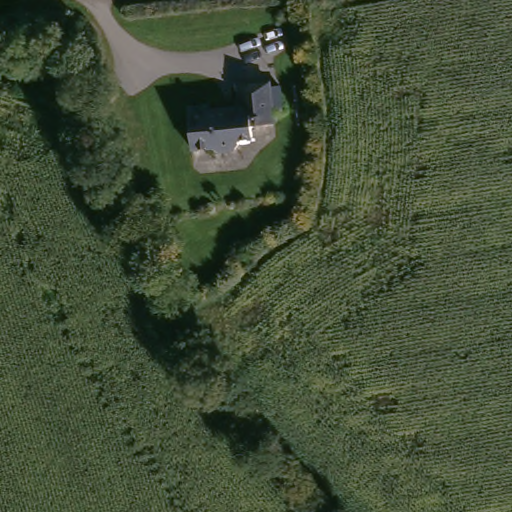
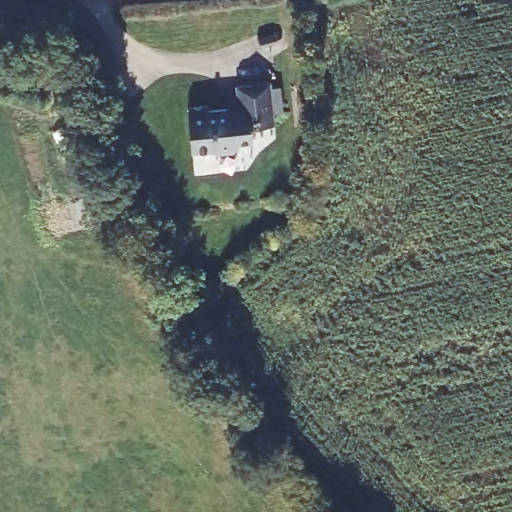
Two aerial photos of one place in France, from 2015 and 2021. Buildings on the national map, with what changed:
unchanged [(208,101),(209,110),(228,109),(228,112),(241,111),(239,82),(270,78),(271,84),(281,83),(283,109),(274,109),(275,122),(254,123),(255,135),(240,136),(238,145),(217,148),(213,143),(191,144),(187,102),(208,101)]

